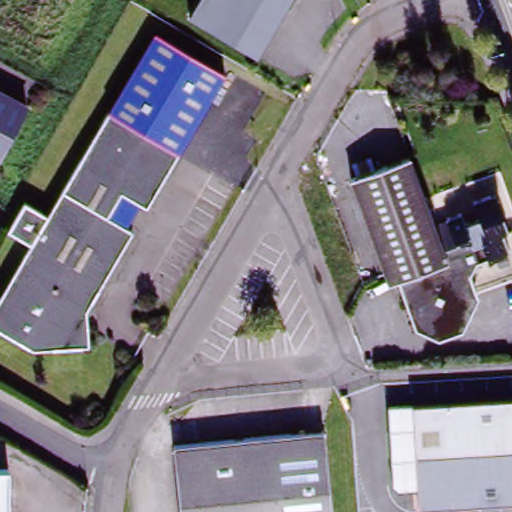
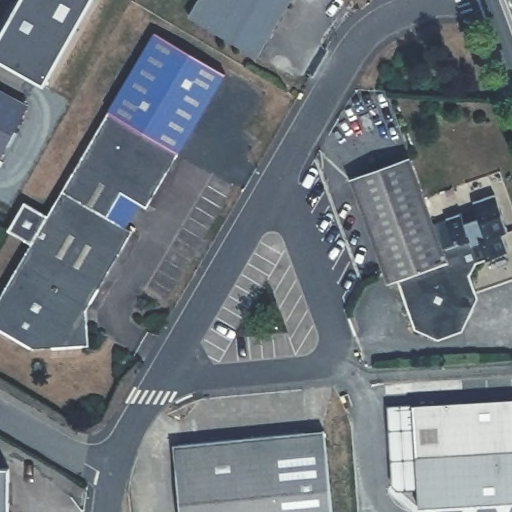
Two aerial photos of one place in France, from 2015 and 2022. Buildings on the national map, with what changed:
new [(0,37),(21,0),(91,0),(43,85),(0,58),(0,37)]
unchanged [(256,53),(189,14),(197,0),(288,0),(256,53)]
unchanged [(89,352),(33,356),(0,336),(0,303),(31,250),(9,237),(25,209),(47,222),(155,39),(225,80),(146,214),(140,210),(126,234),(132,237),(86,316),(87,330),(89,352)]
unchanged [(0,159),(0,95),(27,111),(0,159)]
unchanged [(350,185),(409,164),(443,256),(455,251),(445,226),(460,221),(463,230),(478,225),(473,209),(495,201),(508,238),(492,244),(498,261),(466,272),(400,297),(397,287),(389,290),(350,185)]
unchanged [(462,337),(450,341),(438,346),(415,335),(410,320),(400,297),(466,272),(473,292),(477,303),(462,337)]
unchanged [(512,401),(512,504),(423,509),(422,495),(417,407),(512,401)]
unchanged [(422,495),(403,496),(399,492),(394,408),(398,408),(417,407),(422,495)]
unchanged [(331,512),(180,512),(174,447),(323,433),(331,512)]
unchanged [(0,512),(0,466),(9,466),(9,512),(0,512)]

